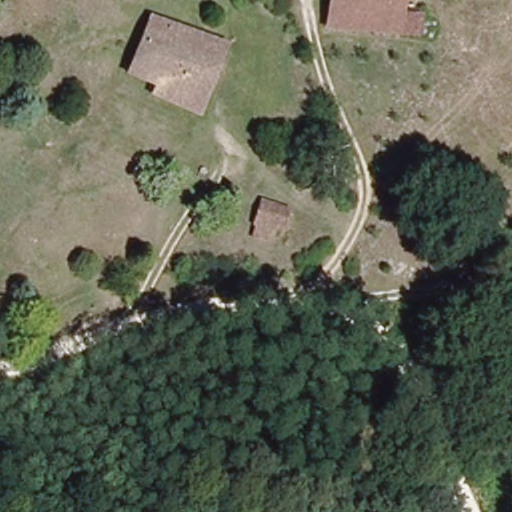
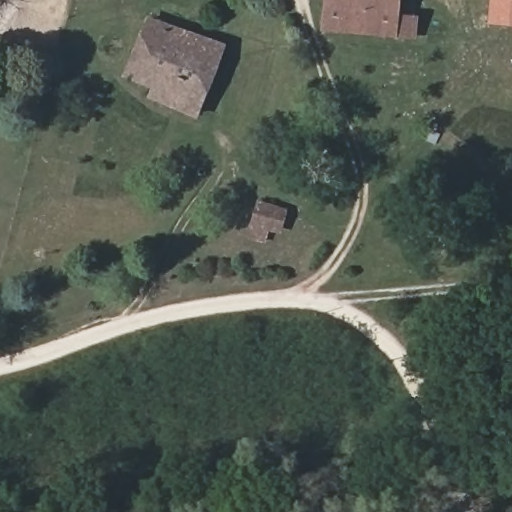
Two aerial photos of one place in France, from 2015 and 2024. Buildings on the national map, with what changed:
unchanged [(395,9),(395,20),(415,21),(415,40),(339,36),(322,35),(325,3),(325,0),(366,0),(392,1),(395,1),(395,9)]
unchanged [(395,1),(392,1),(366,0),(396,0),(395,1)]
new [(489,0),(512,0),(512,24),(487,22),(489,0)]
unchanged [(225,53),(200,115),(147,95),(156,71),(139,64),(125,58),(141,22),(156,27),(162,10),(185,18),(180,33),(225,53)]
unchanged [(290,209),(282,235),(269,232),(264,245),(248,240),(258,201),(290,209)]

